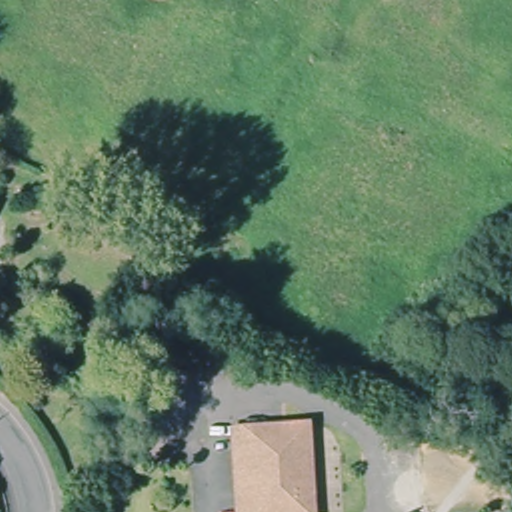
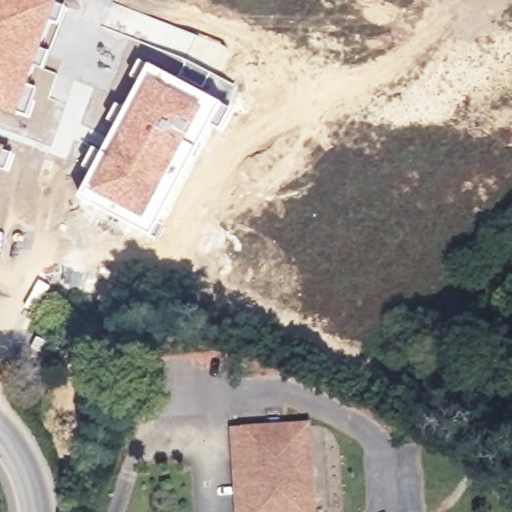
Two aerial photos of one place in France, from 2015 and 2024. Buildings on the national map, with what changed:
new [(31,89),(36,91),(26,119),(0,112),(0,0),(54,0),(62,3),(31,89)]
new [(92,173),(84,168),(95,148),(103,152),(140,84),(131,79),(141,60),(191,84),(233,109),(221,130),(214,126),(155,239),(119,223),(79,200),(92,173)]
new [(9,165),(4,163),(0,175),(0,146),(13,151),(9,165)]
unchanged [(240,426),(252,426),(315,422),(319,512),(243,512),(240,426)]

